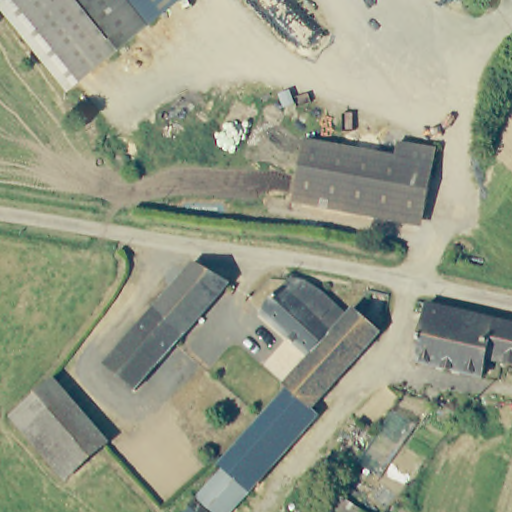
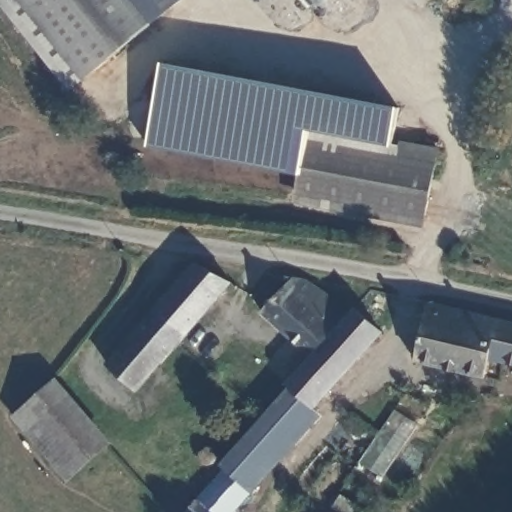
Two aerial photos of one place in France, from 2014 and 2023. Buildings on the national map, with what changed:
unchanged [(83,83),(12,0),(179,0),(83,83)]
new [(145,145),(162,62),(398,107),(389,146),(399,148),(400,152),(398,159),(392,162),(303,148),(299,173),(145,145)]
unchanged [(293,206),(303,148),(392,162),(398,159),(400,152),(399,148),(407,148),(435,154),(423,226),(327,211),(293,206)]
unchanged [(135,390),(103,362),(191,271),(229,282),(234,281),(135,390)]
unchanged [(311,351),(310,352),(265,309),(290,283),(324,291),(347,313),(311,351)]
unchanged [(382,331),(242,481),(224,464),(219,460),(261,414),(290,385),(285,377),(310,352),(311,351),(347,313),(355,305),(382,331)]
unchanged [(415,365),(426,305),(512,321),(512,365),(489,361),(485,378),(415,365)]
unchanged [(14,415),(40,392),(52,381),(70,401),(109,442),(95,454),(72,476),(14,415)]
unchanged [(226,512),(214,512),(195,496),(224,464),(242,481),(249,487),(226,512)]
unchanged [(356,512),(332,493),(345,479),(385,507),(381,512),(356,512)]

